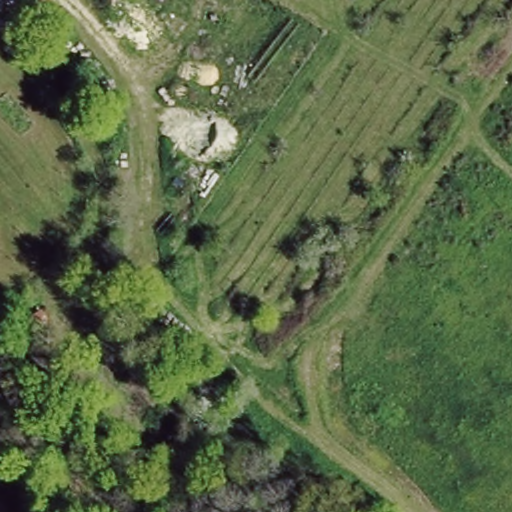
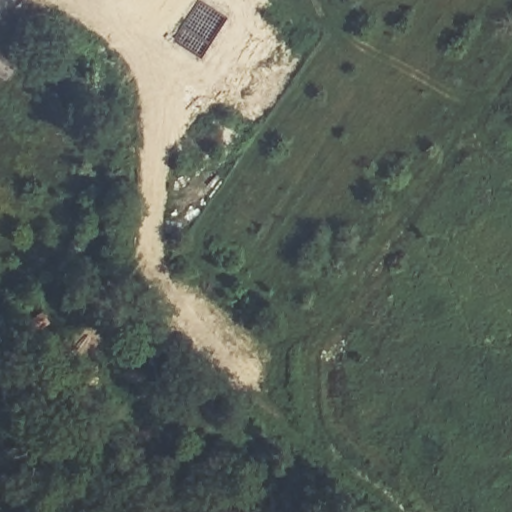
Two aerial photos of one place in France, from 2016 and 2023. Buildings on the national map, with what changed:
unchanged [(33,40),(66,19),(91,51),(62,77),(33,40)]

